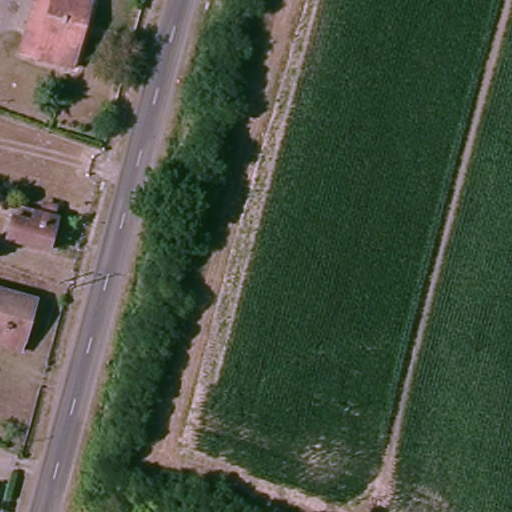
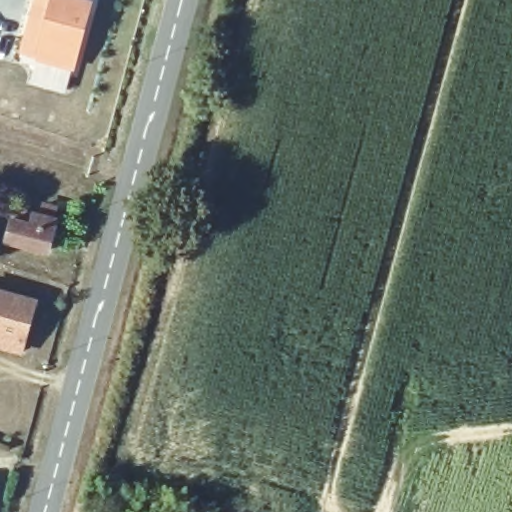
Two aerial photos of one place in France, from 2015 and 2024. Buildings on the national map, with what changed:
unchanged [(73,64),(40,53),(27,48),(41,0),(85,0),(91,2),(73,64)]
unchanged [(55,243),(9,231),(14,212),(34,217),(37,207),(62,214),(55,243)]
unchanged [(20,349),(9,349),(10,336),(0,334),(0,289),(33,299),(20,349)]

